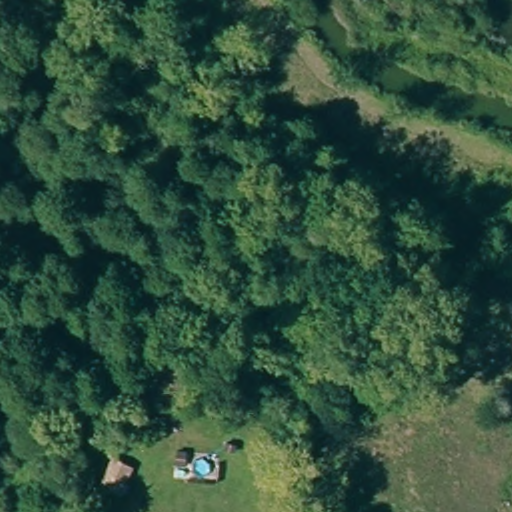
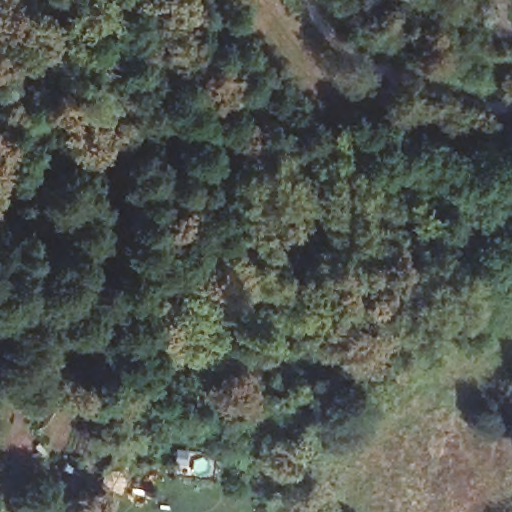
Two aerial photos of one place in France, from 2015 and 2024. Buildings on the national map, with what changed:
unchanged [(111,458),(131,467),(120,492),(100,482),(111,458)]

